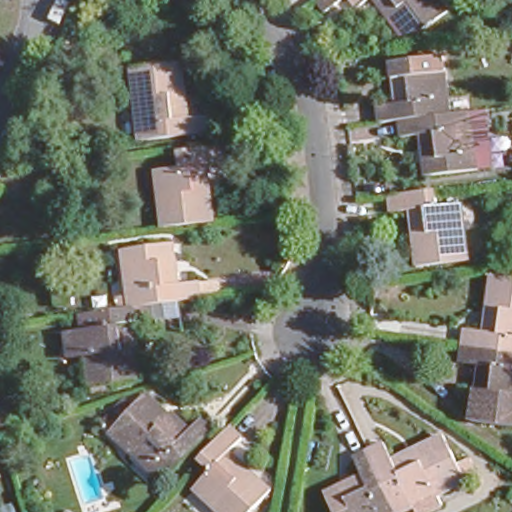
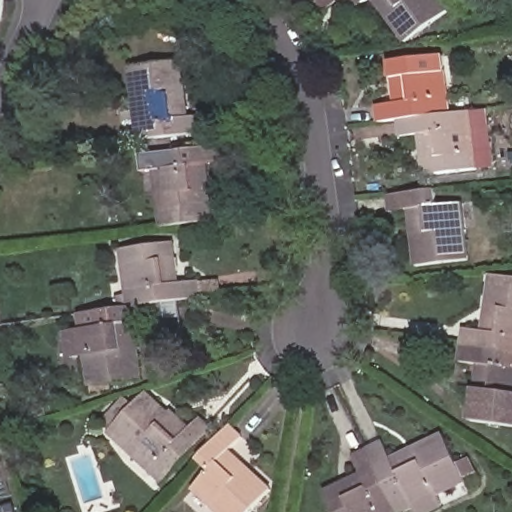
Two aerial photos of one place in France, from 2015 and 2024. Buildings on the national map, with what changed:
unchanged [(443,17),(398,47),(365,5),(352,14),(341,0),(320,16),(311,6),(317,2),(319,0),(429,0),(443,17)]
unchanged [(102,35),(127,17),(137,29),(112,48),(102,35)]
unchanged [(193,109),(213,107),(215,124),(144,134),(135,62),(186,55),(193,109)]
unchanged [(401,123),(381,126),(379,107),(395,103),(390,62),(442,55),(451,116),(401,123)]
unchanged [(426,179),(421,138),(402,140),(401,123),(451,116),(473,114),(480,172),(426,179)]
unchanged [(186,161),(185,144),(196,143),(232,138),(235,155),(216,157),(224,213),(178,220),(170,221),(162,165),(186,161)]
unchanged [(460,207),(466,262),(415,267),(407,213),(389,215),(386,197),(430,192),(432,209),(460,207)]
unchanged [(145,296),(124,299),(115,242),(167,235),(173,274),(191,272),(194,289),(145,296)]
unchanged [(465,325),(483,326),(491,273),(512,274),(512,350),(463,344),(465,325)]
unchanged [(145,312),(146,325),(131,327),(136,371),(85,377),(80,348),(65,349),(60,324),(77,320),(75,305),(124,299),(145,296),(147,311),(145,312)]
unchanged [(0,329),(0,314),(2,329),(0,329)]
unchanged [(463,344),(512,350),(512,421),(475,417),(481,362),(461,359),(463,344)]
unchanged [(155,464),(100,416),(137,379),(176,414),(189,402),(201,414),(155,464)]
unchanged [(262,478),(232,512),(218,512),(184,482),(200,463),(188,451),(220,416),(233,429),(221,441),(262,478)]
unchanged [(385,442),(393,456),(443,434),(460,465),(470,460),(480,476),(402,511),(371,450),(385,442)]
unchanged [(363,472),(356,458),(371,450),(402,511),(401,512),(338,512),(328,492),(363,472)]
unchanged [(0,512),(0,508),(16,504),(18,512),(0,512)]

